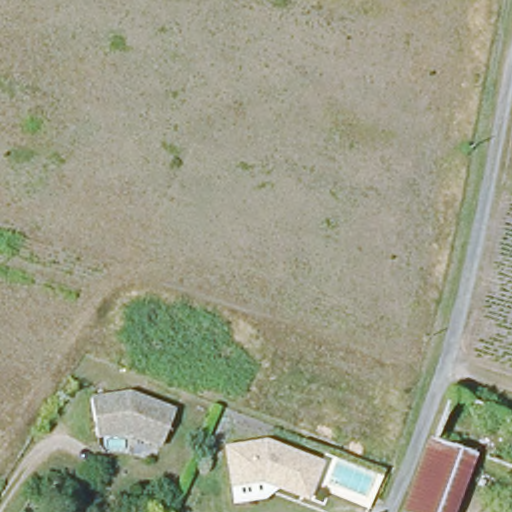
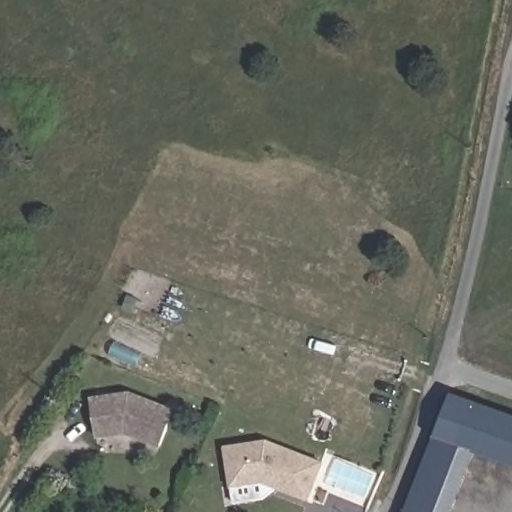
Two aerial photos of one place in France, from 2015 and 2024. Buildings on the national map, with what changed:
new [(451,393),(512,415),(512,465),(434,435),(451,393)]
unchanged [(95,399),(133,394),(179,410),(166,446),(129,432),(112,434),(100,436),(99,429),(95,399)]
unchanged [(481,459),(458,512),(452,512),(412,494),(436,441),(481,459)]
unchanged [(230,448),(271,443),(326,465),(312,501),(266,483),(240,485),(235,486),(234,483),(230,448)]
unchanged [(404,512),(411,496),(412,494),(452,512),(404,512)]

